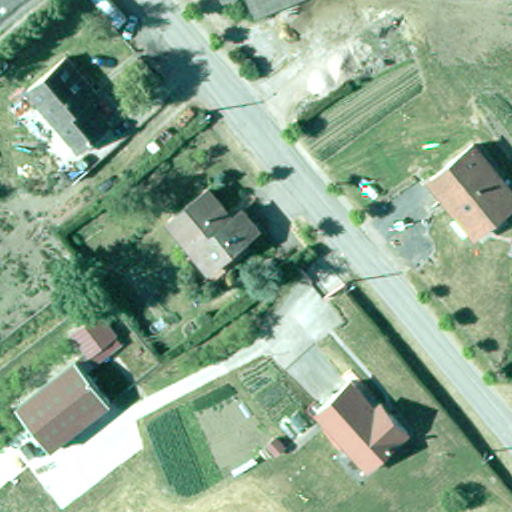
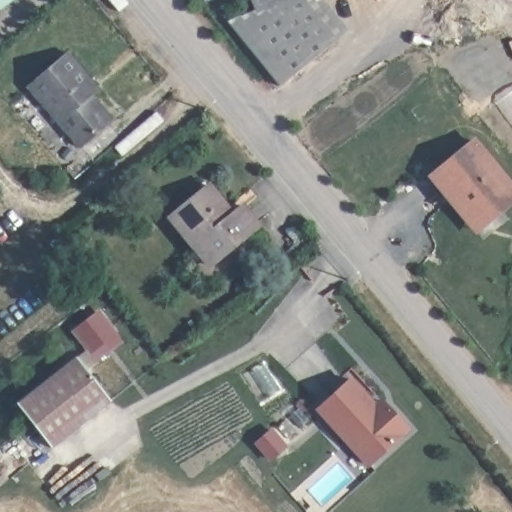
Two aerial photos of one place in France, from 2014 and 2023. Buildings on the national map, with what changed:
new [(0,9),(0,0),(13,0),(0,9)]
unchanged [(230,5),(226,0),(242,0),(230,5)]
new [(230,24),(241,15),(245,19),(258,9),(262,15),(295,0),(326,0),(348,30),(281,86),(230,24)]
unchanged [(262,15),(255,0),(295,0),(262,15)]
unchanged [(35,79),(32,77),(72,43),(102,79),(95,88),(117,112),(112,115),(125,131),(77,170),(15,96),(35,79)]
unchanged [(432,180),(474,145),(512,192),(512,206),(486,227),(477,235),(447,199),(432,180)]
unchanged [(209,189),(222,206),(220,208),(230,221),(243,210),(259,230),(210,270),(170,222),(209,189)]
unchanged [(115,335),(89,355),(74,335),(100,316),(115,335)]
unchanged [(75,361),(108,405),(47,452),(13,407),(75,361)]
unchanged [(368,464),(318,408),(351,378),(375,406),(382,400),(392,411),(408,429),(368,464)]

